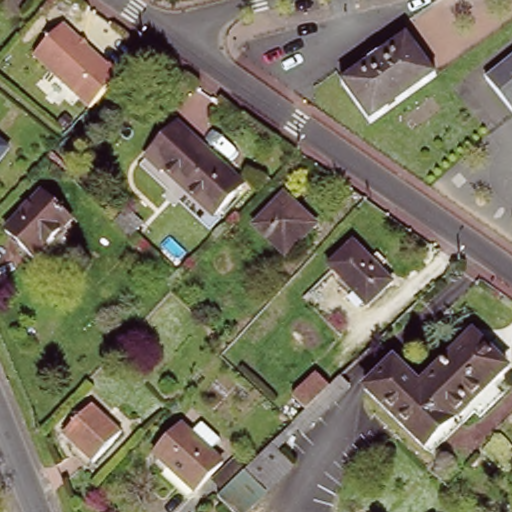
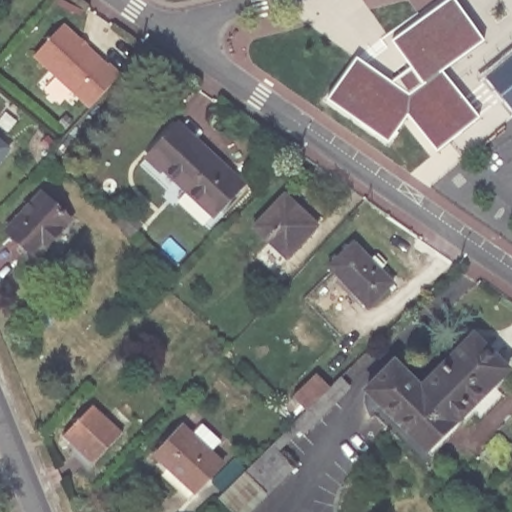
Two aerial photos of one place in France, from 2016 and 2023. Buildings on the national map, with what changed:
new [(388,146),(326,102),(356,60),(390,85),(409,71),(391,44),(451,1),(483,45),(442,75),(479,121),(436,155),(407,118),(388,146)]
unchanged [(61,18),(119,72),(91,105),(34,54),(61,18)]
demolished [(437,74),(371,121),(341,79),(368,60),(364,54),(376,46),(380,51),(408,32),(437,74)]
unchanged [(489,100),(499,92),(488,76),(512,56),(512,114),(505,120),(489,100)]
unchanged [(242,181),(214,211),(164,165),(161,169),(146,155),(178,121),(242,181)]
unchanged [(11,145),(0,158),(0,136),(11,145)]
unchanged [(43,189),(73,217),(36,256),(6,228),(43,189)]
unchanged [(279,197),(312,226),(284,258),(251,229),(279,197)]
unchanged [(115,223),(127,211),(143,226),(133,238),(115,223)]
unchanged [(349,243),(388,284),(363,308),(324,267),(349,243)]
unchanged [(394,358),(421,385),(474,332),(508,366),(492,381),(504,392),(480,415),(469,404),(427,447),(366,386),(394,358)]
unchanged [(243,471),(289,426),(292,423),(304,412),(291,399),(314,376),(327,390),(339,379),(348,389),(301,435),(296,431),(275,451),(290,466),(242,512),(228,512),(214,499),(221,492),(211,481),(232,460),(243,471)]
unchanged [(88,408),(117,435),(88,465),(60,438),(88,408)]
unchanged [(191,494),(153,457),(179,428),(188,437),(198,427),(215,443),(206,453),(218,465),(191,494)]

